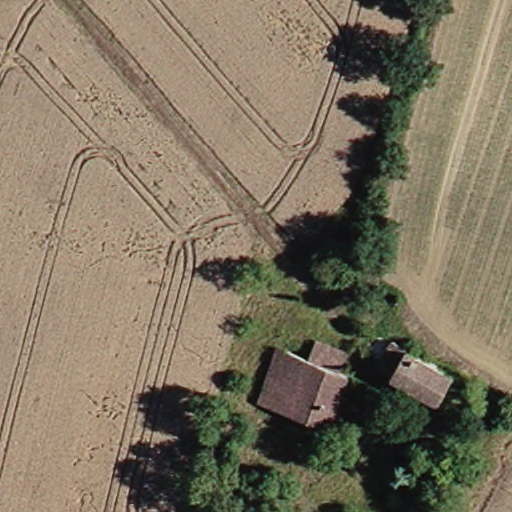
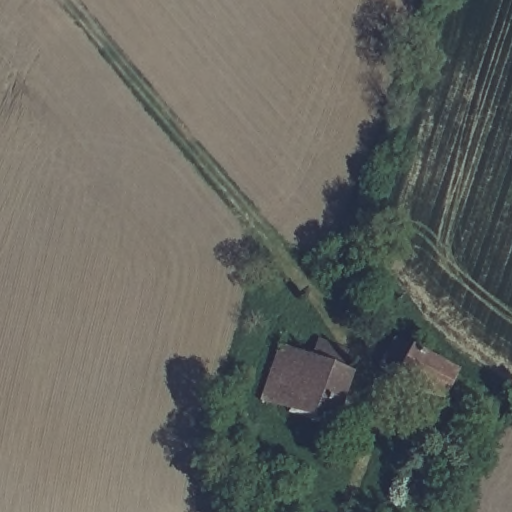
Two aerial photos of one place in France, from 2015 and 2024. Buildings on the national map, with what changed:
unchanged [(255,398),(270,346),(302,357),(308,341),(334,350),(328,366),(351,375),(334,426),(255,398)]
unchanged [(432,405),(385,381),(388,376),(377,370),(392,342),(449,373),(432,405)]
unchanged [(255,512),(252,512),(252,511),(255,512)]

